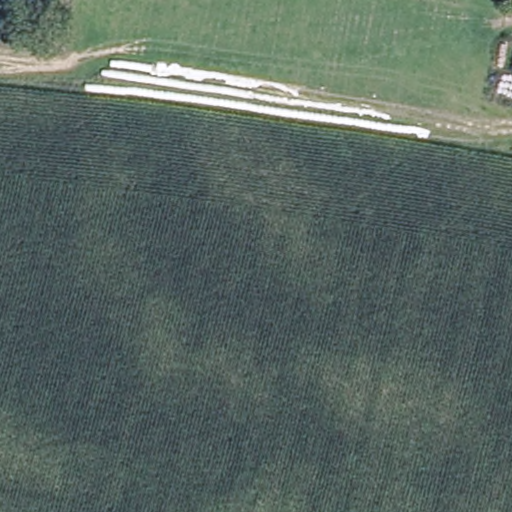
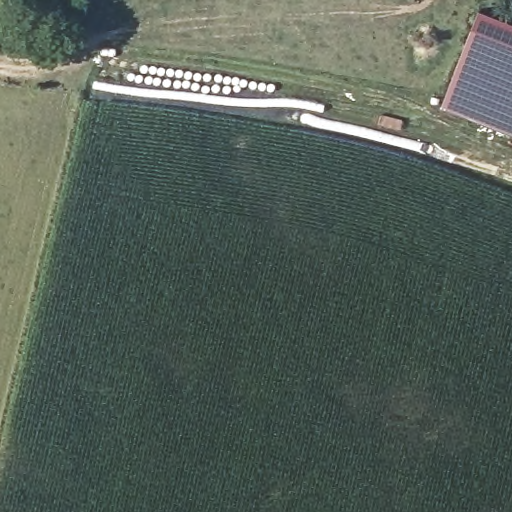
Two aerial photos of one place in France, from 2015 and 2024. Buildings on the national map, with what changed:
new [(480,5),(512,18),(512,134),(442,105),(466,36),(480,5)]

